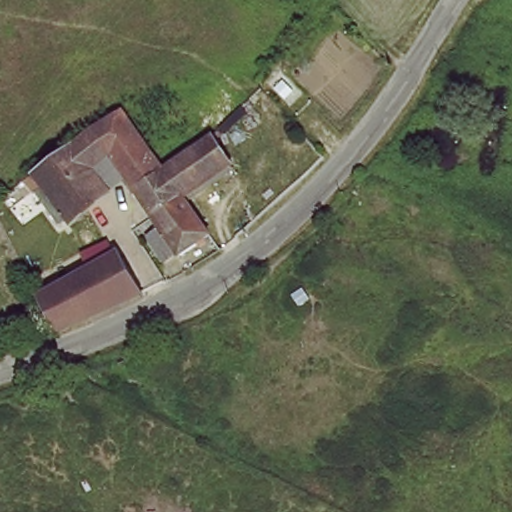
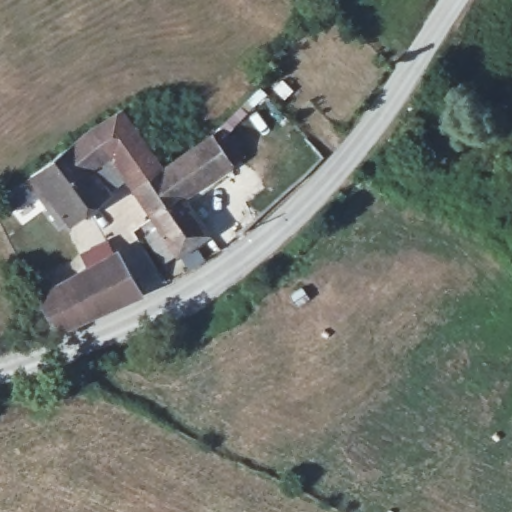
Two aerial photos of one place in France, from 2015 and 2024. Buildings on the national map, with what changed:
unchanged [(126,175),(61,225),(38,194),(48,185),(36,170),(50,159),(90,129),(125,107),(166,167),(136,188),(126,175)]
unchanged [(157,216),(136,188),(166,167),(196,146),(216,133),(234,161),(185,196),(157,216)]
unchanged [(210,232),(184,254),(180,249),(168,258),(151,234),(162,226),(157,216),(185,196),(210,232)]
unchanged [(54,315),(37,289),(116,244),(143,285),(60,323),(54,315)]

